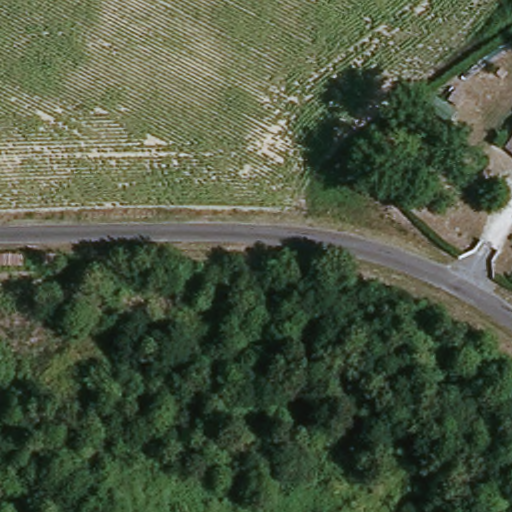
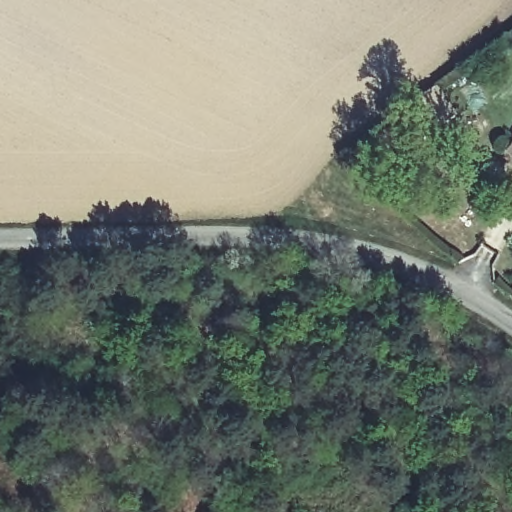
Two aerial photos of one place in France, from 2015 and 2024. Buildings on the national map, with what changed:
unchanged [(508,152),(512,148),(512,155),(508,152)]

